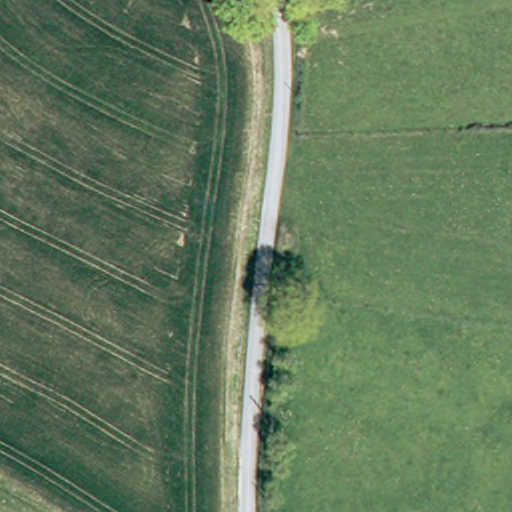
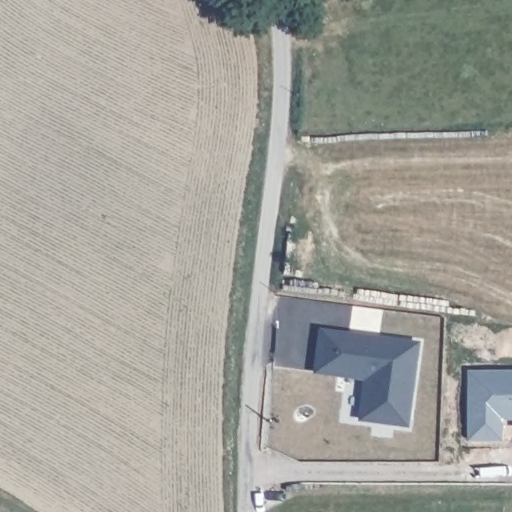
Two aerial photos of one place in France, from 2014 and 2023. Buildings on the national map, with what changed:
new [(419,341),(409,428),(358,422),(363,381),(314,374),(319,329),(419,341)]

